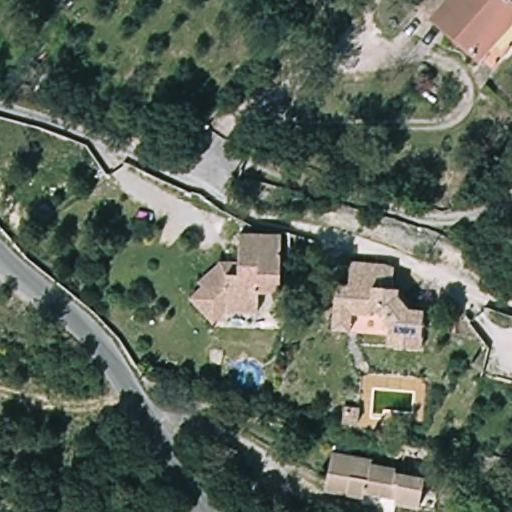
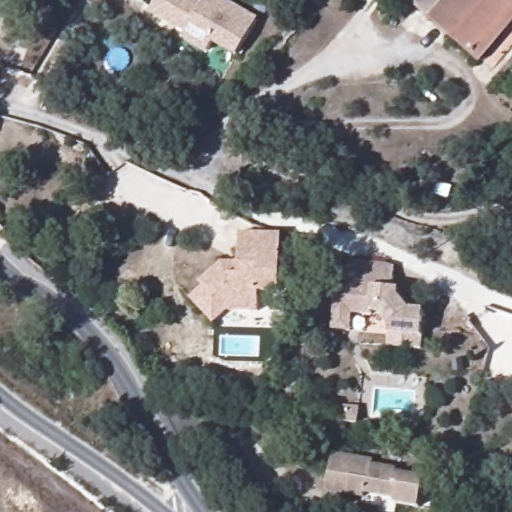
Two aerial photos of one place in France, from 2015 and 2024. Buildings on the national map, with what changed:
new [(202,3),(203,0),(224,0),(258,20),(236,58),(212,45),(207,55),(180,39),(183,34),(148,12),(154,0),(196,0),(202,3)]
unchanged [(487,55),(480,64),(452,40),(429,21),(414,6),(418,0),(441,0),(444,3),(446,0),(512,0),(512,26),(507,32),(487,55)]
unchanged [(507,229),(512,233),(512,264),(492,248),(500,238),(507,229)]
unchanged [(286,231),(285,293),(264,292),(263,310),(230,310),(217,322),(191,295),(206,281),(204,278),(226,257),(244,257),(245,230),(286,231)]
unchanged [(336,286),(350,287),(352,263),(370,264),(395,266),(394,287),(408,308),(423,309),(421,350),(385,348),(387,322),(382,314),(370,313),(370,318),(360,317),(353,317),(352,332),(333,330),(336,286)]
unchanged [(397,470),(396,472),(425,478),(419,512),(416,512),(389,507),(390,501),(365,496),(364,501),(325,493),(333,452),(372,460),(371,465),(397,470)]

